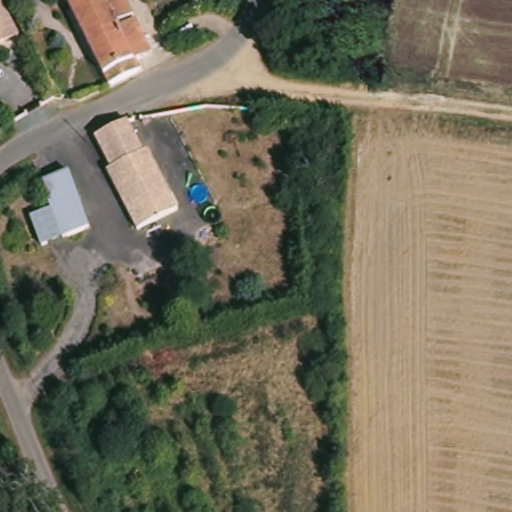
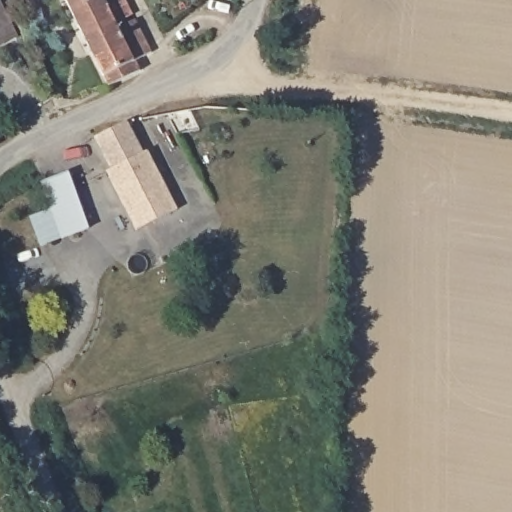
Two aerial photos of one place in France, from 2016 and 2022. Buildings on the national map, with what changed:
unchanged [(60,0),(97,0),(67,15),(60,0)]
unchanged [(132,64),(139,77),(138,78),(106,94),(67,15),(97,0),(125,0),(131,13),(110,24),(114,30),(134,20),(151,54),(132,64)]
unchanged [(18,39),(0,48),(0,3),(14,31),(18,39)]
unchanged [(149,152),(154,150),(185,209),(144,230),(113,171),(117,169),(102,136),(131,121),(149,152)]
unchanged [(27,223),(49,215),(37,184),(67,173),(88,233),(59,243),(37,251),(27,223)]

